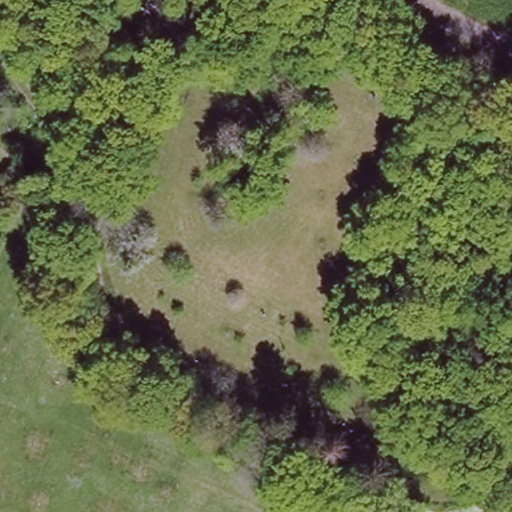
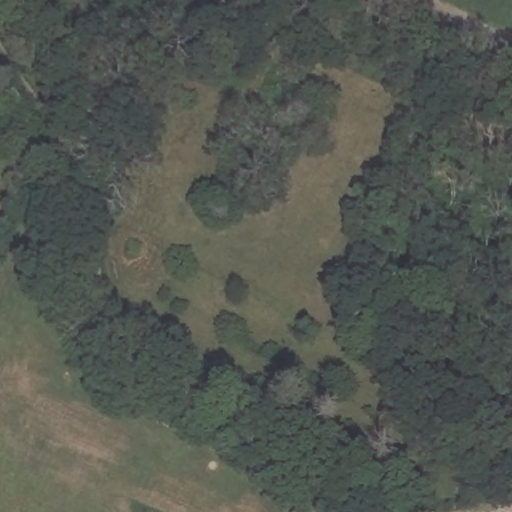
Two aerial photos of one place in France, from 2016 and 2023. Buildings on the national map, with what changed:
unchanged [(0,197),(0,194),(1,195),(0,197)]

